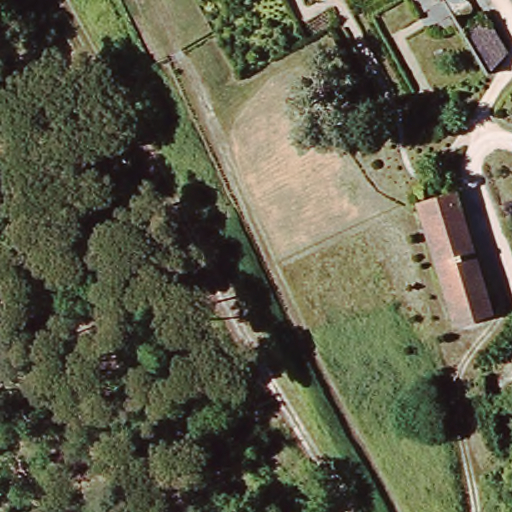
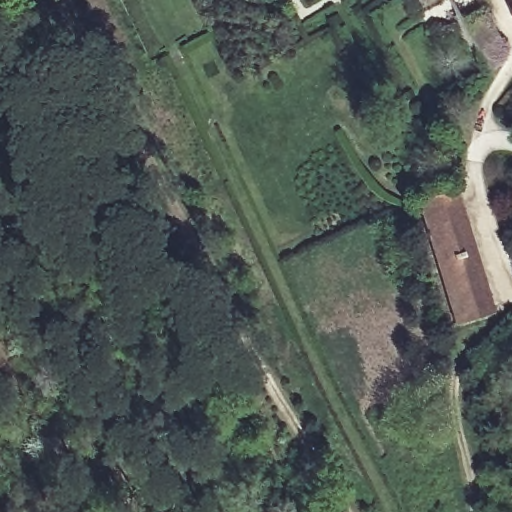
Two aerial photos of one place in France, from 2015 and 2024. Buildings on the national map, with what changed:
unchanged [(418,0),(447,0),(425,11),(418,0)]
unchanged [(480,66),(457,26),(482,13),(505,51),(480,66)]
unchanged [(450,189),(472,266),(448,271),(461,317),(451,320),(417,199),(450,189)]
unchanged [(486,311),(461,317),(448,271),(472,266),(486,311)]

